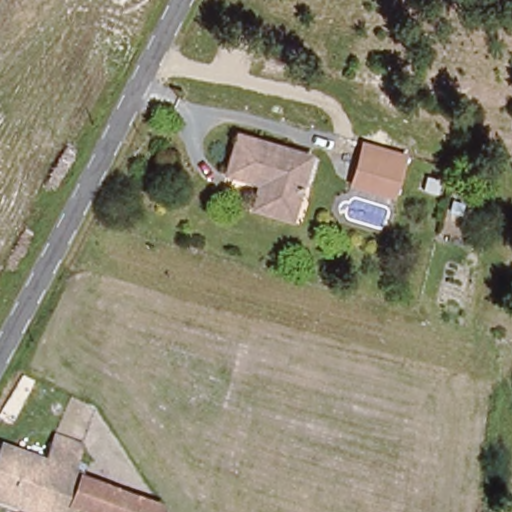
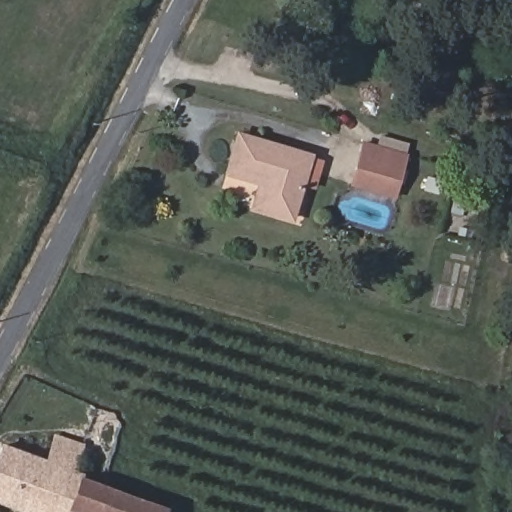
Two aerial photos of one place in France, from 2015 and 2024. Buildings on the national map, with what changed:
unchanged [(254,204),(260,183),(226,172),(240,132),(309,152),(293,215),(254,204)]
unchanged [(349,185),(359,144),(400,155),(389,197),(349,185)]
unchanged [(91,482),(165,509),(164,512),(31,512),(0,502),(0,467),(6,450),(50,464),(60,437),(87,446),(78,472),(92,478),(91,482)]

